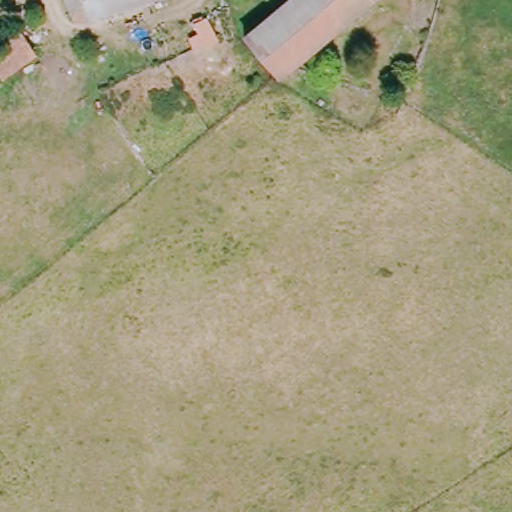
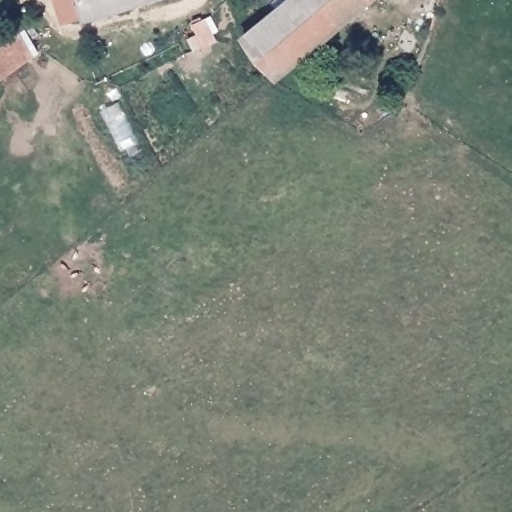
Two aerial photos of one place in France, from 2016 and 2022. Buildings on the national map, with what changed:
unchanged [(81,20),(78,10),(65,13),(61,0),(152,0),(81,20)]
unchanged [(240,43),(293,0),(371,0),(373,3),(272,83),(270,82),(240,43)]
unchanged [(371,0),(377,0),(373,3),(371,0)]
unchanged [(429,36),(410,33),(414,5),(435,9),(429,36)]

